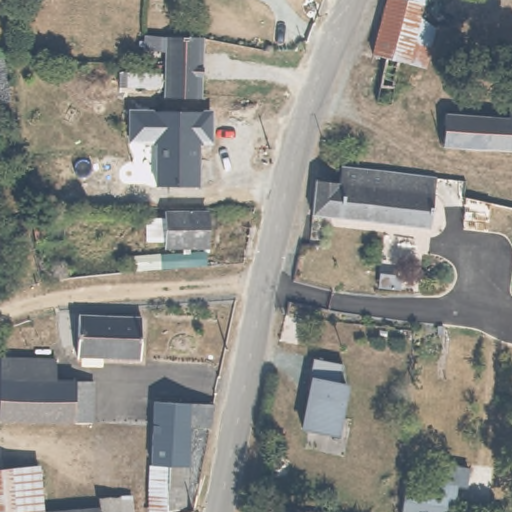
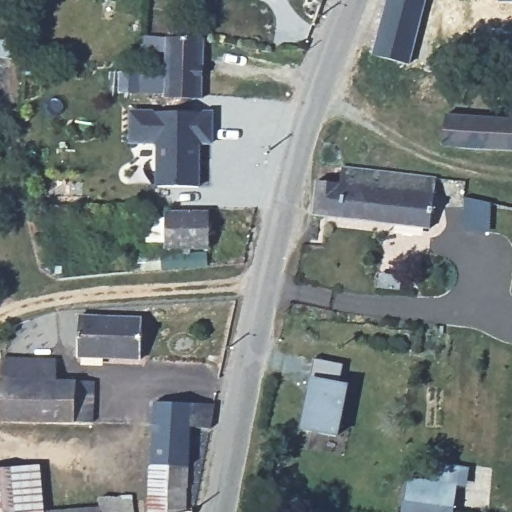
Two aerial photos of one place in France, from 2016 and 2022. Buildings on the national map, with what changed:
unchanged [(388,0),(423,0),(417,24),(432,27),(422,64),(397,58),(380,54),(373,53),(388,0)]
unchanged [(163,96),(165,52),(142,49),(142,35),(206,39),(202,96),(163,96)]
unchanged [(157,184),(157,144),(130,144),(130,111),(214,111),(214,145),(202,146),(198,185),(157,184)]
unchanged [(455,147),(455,115),(512,117),(512,150),(455,147)]
unchanged [(345,185),(346,168),(350,168),(437,177),(433,227),(316,218),(317,184),(345,185)]
unchanged [(215,211),(215,244),(174,244),(174,228),(155,228),(155,215),(174,216),(174,212),(215,211)]
unchanged [(168,251),(170,266),(140,269),(139,254),(168,251)]
unchanged [(143,319),(142,361),(83,359),(85,317),(143,319)]
unchanged [(60,382),(98,384),(97,426),(1,421),(5,357),(59,360),(59,364),(60,382)]
unchanged [(344,363),(340,383),(347,384),(336,436),(303,429),(312,389),(308,388),(315,357),(344,363)]
unchanged [(189,426),(188,510),(159,510),(157,418),(157,399),(211,400),(211,425),(189,426)]
unchanged [(435,481),(441,462),(477,470),(472,488),(460,485),(455,512),(399,512),(411,477),(435,481)]
unchanged [(44,508),(98,502),(97,494),(129,490),(131,512),(0,512),(0,468),(39,464),(44,508)]

